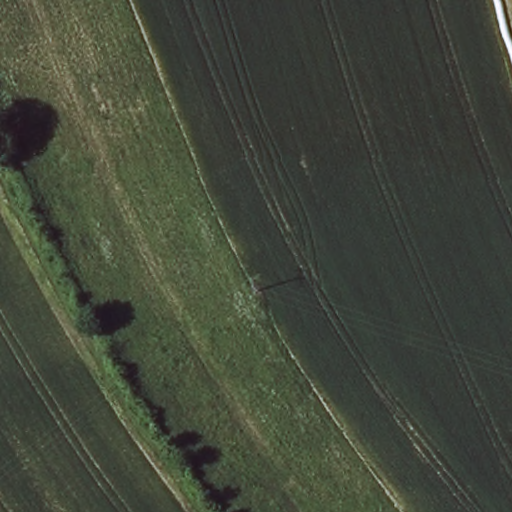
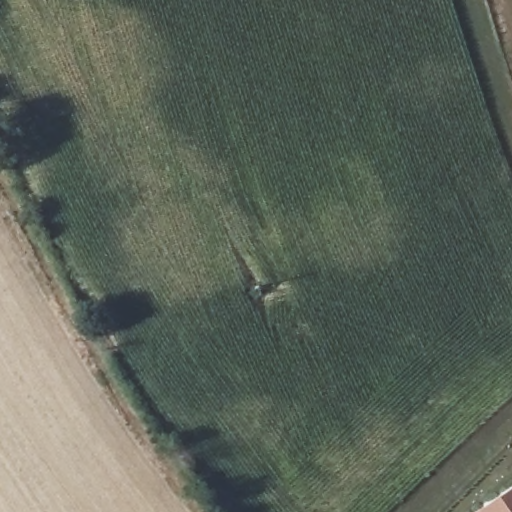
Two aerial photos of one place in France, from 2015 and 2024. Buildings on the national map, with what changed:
new [(512,512),(477,512),(512,489),(512,512)]

